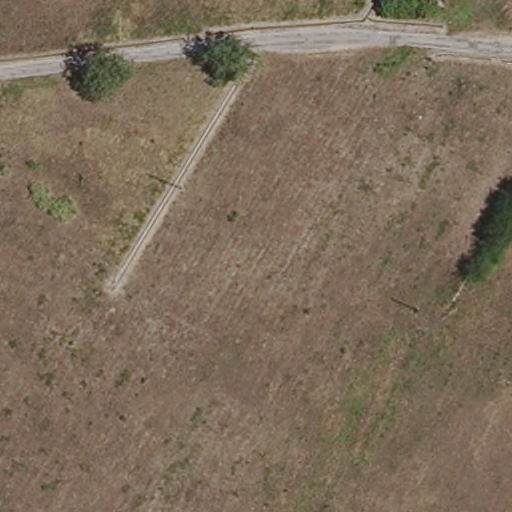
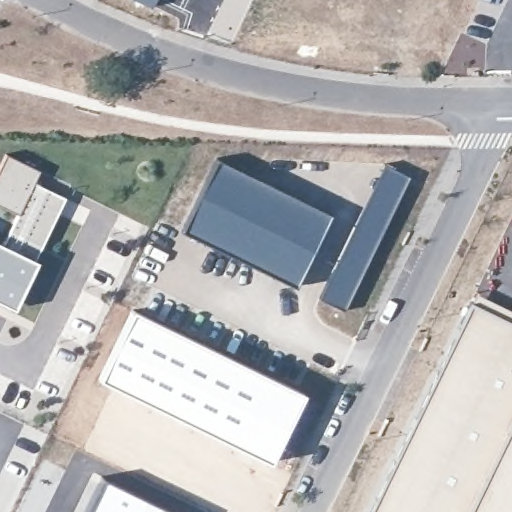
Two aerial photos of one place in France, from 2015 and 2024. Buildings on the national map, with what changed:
new [(151,8),(134,0),(155,0),(151,8)]
new [(0,296),(0,240),(3,241),(18,210),(0,201),(0,166),(7,151),(39,167),(33,178),(64,194),(16,293),(12,302),(0,296)]
new [(217,158),(332,213),(296,286),(244,262),(183,231),(217,158)]
new [(345,239),(385,163),(410,176),(344,310),(318,298),(345,239)]
new [(512,310),(512,421),(468,512),(368,512),(475,293),(512,310)]
new [(131,309),(218,350),(305,393),(269,463),(98,379),(131,309)]
new [(512,512),(468,512),(512,421),(512,512)]
new [(174,512),(89,512),(105,479),(174,512)]

